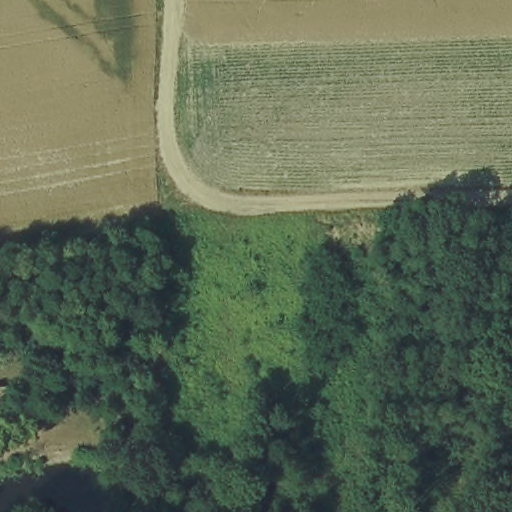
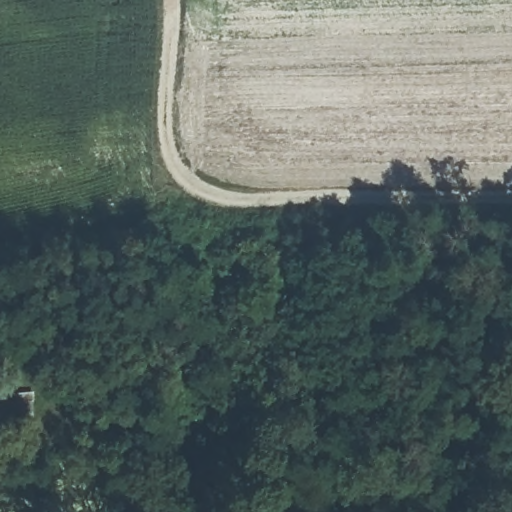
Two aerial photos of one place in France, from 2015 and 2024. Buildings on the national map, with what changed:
unchanged [(13,414),(0,416),(0,389),(11,388),(13,414)]

